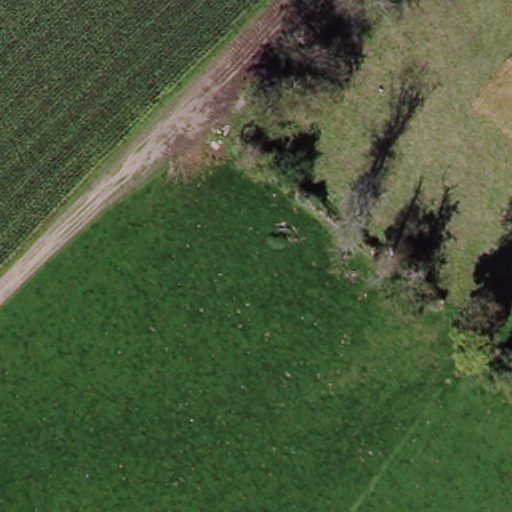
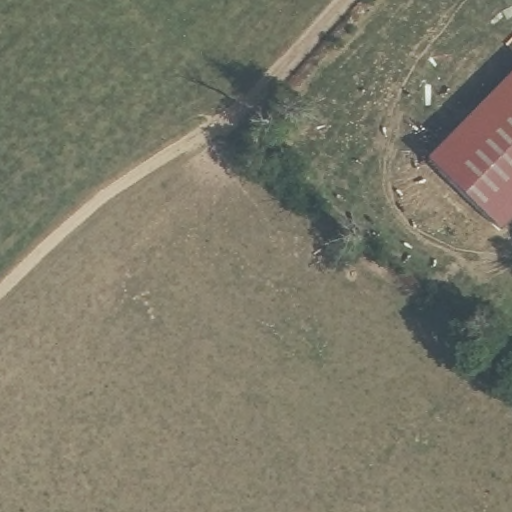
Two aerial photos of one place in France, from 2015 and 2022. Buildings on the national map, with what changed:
new [(501,229),(429,158),(512,74),(512,218),(501,229)]

